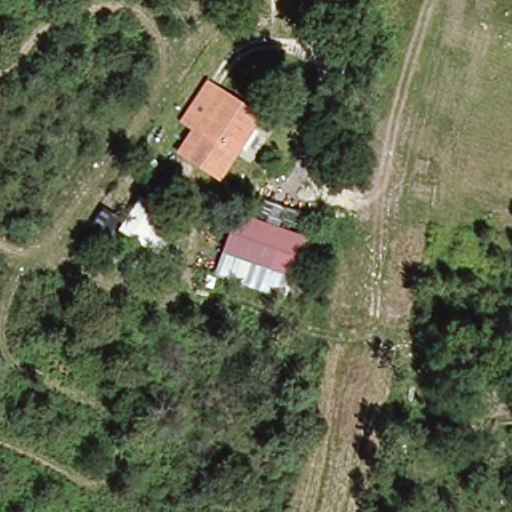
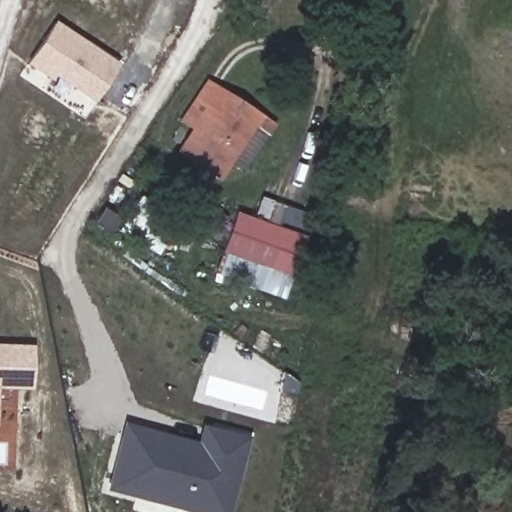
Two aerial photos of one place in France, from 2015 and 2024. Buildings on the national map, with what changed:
new [(57,22),(119,65),(94,102),(55,76),(52,80),(29,63),(41,42),(57,22)]
unchanged [(189,144),(212,107),(197,97),(207,81),(260,117),(227,170),(189,144)]
unchanged [(223,251),(237,213),(302,242),(288,279),(223,251)]
new [(32,345),(30,390),(0,389),(0,344),(32,345)]
new [(250,435),(230,512),(191,512),(105,490),(124,421),(197,441),(202,423),(250,435)]

